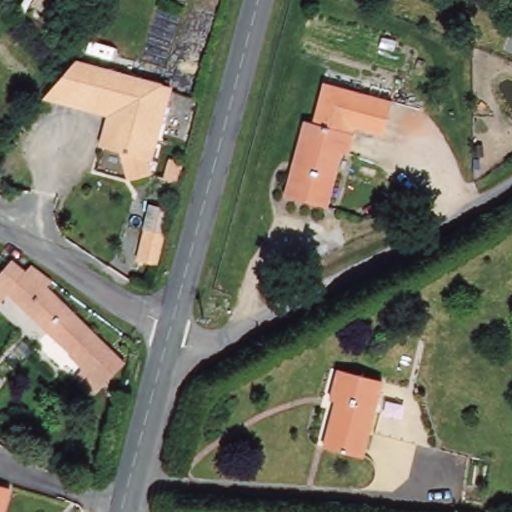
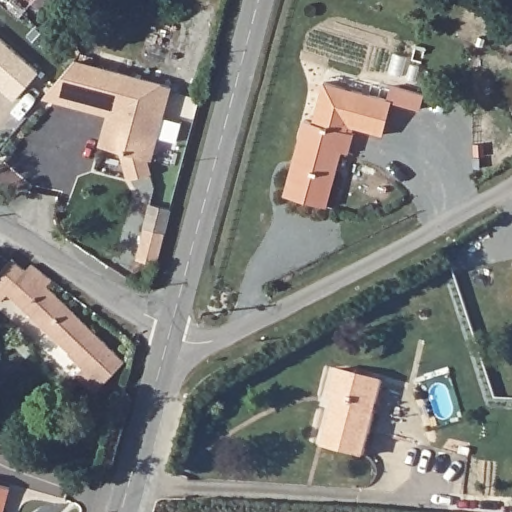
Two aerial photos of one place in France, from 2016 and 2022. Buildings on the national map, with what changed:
new [(13,99),(0,87),(0,38),(39,71),(13,99)]
unchanged [(104,68),(154,82),(171,86),(152,157),(152,159),(147,158),(151,173),(129,179),(122,151),(100,146),(109,114),(45,97),(76,61),(104,68)]
unchanged [(324,83),(395,101),(385,142),(352,136),(331,130),(314,126),(324,83)]
unchanged [(347,155),(341,153),(326,209),(283,197),(291,171),(293,172),(301,142),(298,142),(303,122),(314,126),(352,136),(347,155)]
unchanged [(166,226),(157,256),(140,249),(147,222),(166,226)]
unchanged [(17,295),(11,302),(0,295),(0,285),(15,262),(29,270),(30,271),(36,267),(56,283),(52,289),(131,362),(102,392),(84,376),(92,370),(75,355),(77,347),(34,308),(32,311),(17,295)]
unchanged [(332,392),(341,363),(388,377),(368,452),(327,440),(340,395),(332,392)]
unchanged [(5,503),(0,502),(0,482),(9,485),(5,503)]

